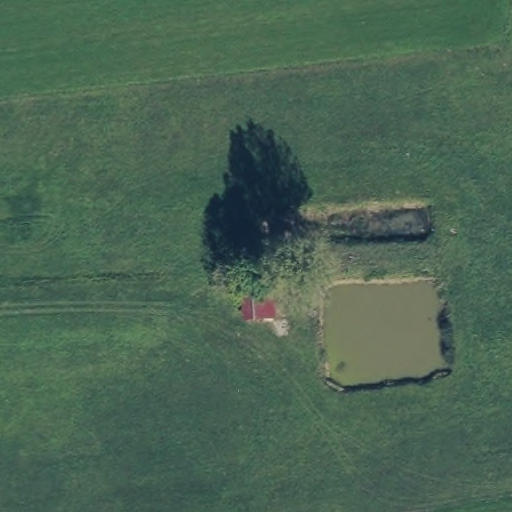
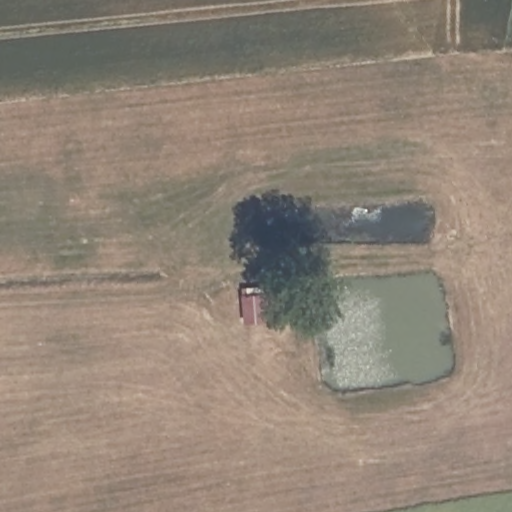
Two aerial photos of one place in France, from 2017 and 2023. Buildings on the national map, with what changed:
unchanged [(241,323),(239,289),(272,287),(276,324),(241,323)]

